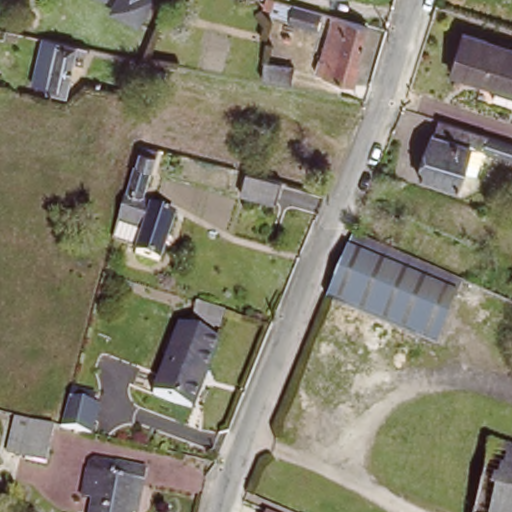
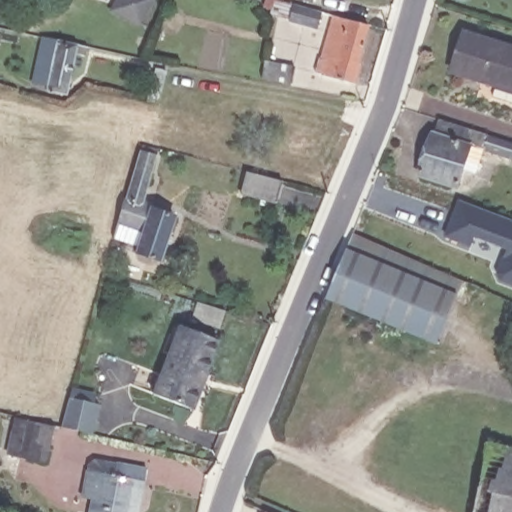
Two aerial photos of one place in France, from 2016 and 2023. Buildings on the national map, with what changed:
unchanged [(138,17),(114,6),(118,0),(145,0),(138,17)]
unchanged [(316,5),(313,20),(289,13),(293,0),(297,0),(316,5)]
unchanged [(370,16),(352,75),(318,65),(336,5),(370,16)]
unchanged [(512,41),(512,95),(496,90),(501,76),(494,74),(493,79),(453,67),(465,27),(512,41)]
unchanged [(295,34),(294,39),(288,37),(289,32),(295,34)]
unchanged [(48,39),(92,47),(90,57),(81,55),(73,97),(53,92),(53,89),(38,85),(48,39)]
unchanged [(301,64),(298,80),(267,74),(270,57),(301,64)]
unchanged [(484,155),(480,170),(467,165),(459,191),(422,180),(436,136),(438,137),(442,122),(512,145),(512,163),(484,155)]
unchanged [(161,150),(149,206),(181,217),(165,260),(141,252),(150,224),(130,217),(135,202),(131,201),(144,146),(161,150)]
unchanged [(274,195),(239,186),(244,165),(279,175),(274,195)]
new [(458,200),(512,220),(512,286),(499,280),(496,274),(505,250),(474,237),(471,248),(444,236),(458,200)]
unchanged [(341,307),(316,296),(345,228),(462,278),(480,286),(472,305),(450,353),(341,307)]
unchanged [(221,338),(195,407),(159,393),(184,325),(221,338)]
unchanged [(27,426),(11,422),(15,409),(53,418),(60,389),(63,381),(85,387),(83,395),(89,397),(81,425),(58,420),(48,457),(43,455),(21,450),(27,426)]
unchanged [(474,512),(492,441),(512,446),(512,512),(474,512)]
unchanged [(85,483),(88,466),(95,460),(148,472),(146,485),(142,485),(140,497),(85,483)]
unchanged [(83,500),(85,483),(140,497),(137,512),(95,512),(96,502),(83,500)]

